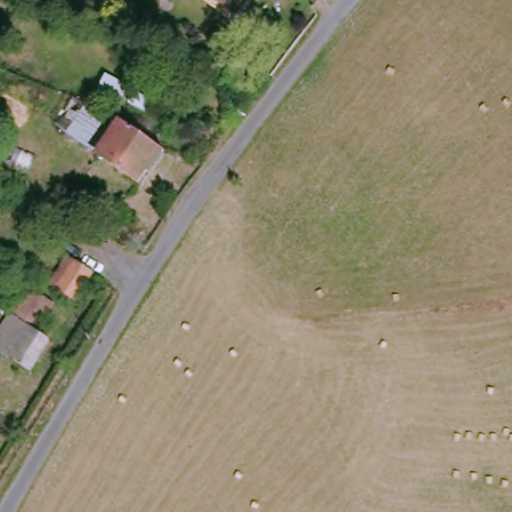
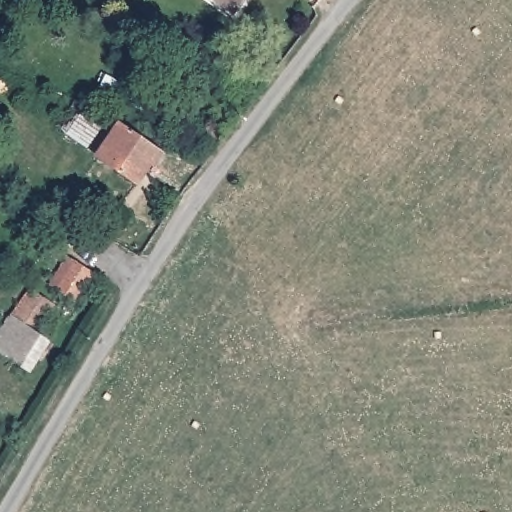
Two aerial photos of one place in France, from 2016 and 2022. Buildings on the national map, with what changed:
unchanged [(225,0),(245,0),(238,10),(225,0)]
unchanged [(99,152),(69,130),(87,105),(117,127),(99,152)]
unchanged [(137,181),(99,152),(117,127),(158,155),(137,181)]
unchanged [(101,272),(84,298),(59,281),(76,255),(101,272)]
unchanged [(0,312),(4,306),(17,315),(36,282),(59,297),(37,326),(56,338),(33,372),(0,353),(0,312)]

